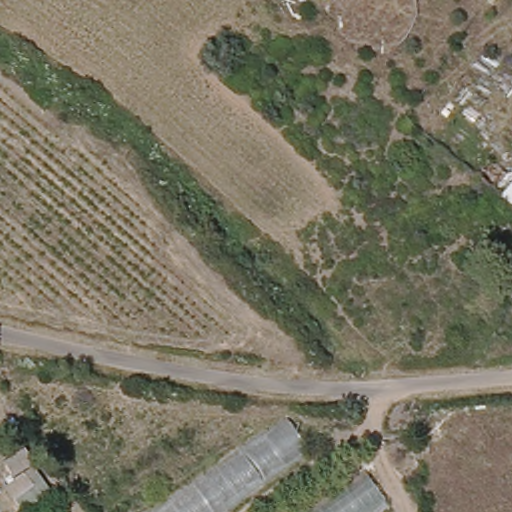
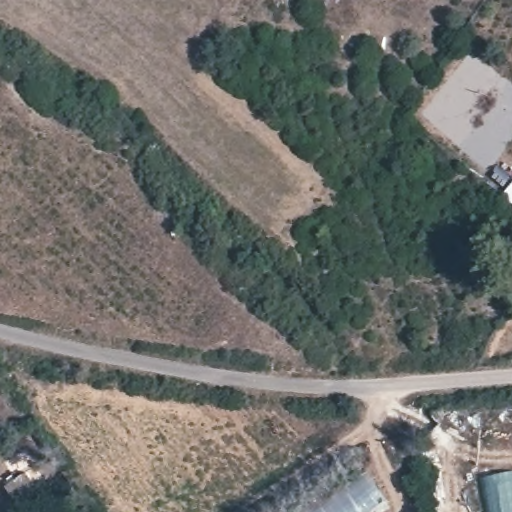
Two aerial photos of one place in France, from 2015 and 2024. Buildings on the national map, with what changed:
demolished [(147,512),(287,417),(310,451),(222,512),(147,512)]
new [(34,466),(52,489),(22,511),(4,486),(34,466)]
unchanged [(390,507),(383,512),(305,512),(362,472),(390,507)]
new [(490,512),(484,478),(512,472),(512,512),(490,512)]

